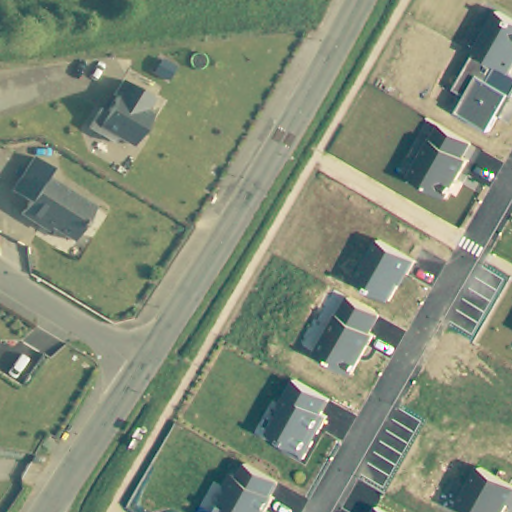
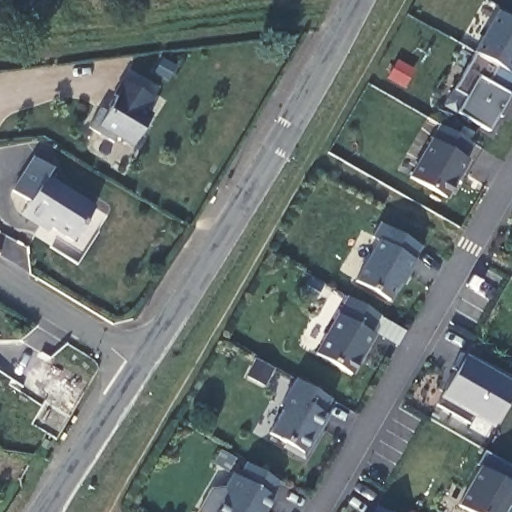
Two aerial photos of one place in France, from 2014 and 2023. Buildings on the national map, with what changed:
unchanged [(469,96),(457,89),(476,53),(501,11),(512,17),(512,98),(503,114),(500,112),(490,131),(457,115),(469,96)]
unchanged [(97,112),(104,116),(113,100),(110,98),(119,84),(149,102),(141,115),(147,119),(130,149),(115,140),(111,147),(86,132),(97,112)]
unchanged [(464,156),(470,160),(449,199),(407,177),(438,123),(472,142),(464,156)]
unchanged [(23,216),(30,204),(13,193),(34,159),(50,169),(45,177),(94,206),(75,242),(45,224),(42,227),(23,216)]
unchanged [(401,286),(398,285),(389,301),(353,280),(377,239),(416,260),(401,286)]
unchanged [(371,332),(376,335),(354,376),(313,353),(347,295),(381,315),(371,332)]
new [(443,396),(466,356),(512,382),(512,394),(493,427),(473,416),(470,423),(437,405),(443,396)]
unchanged [(322,412),(326,415),(302,457),(281,447),(284,442),(268,432),(281,407),(279,402),(293,377),(331,397),(322,412)]
unchanged [(274,497),(265,512),(213,512),(226,492),(223,485),(231,472),(238,475),(245,462),(280,481),(272,495),(274,497)]
unchanged [(504,512),(469,512),(457,505),(479,465),(512,484),(512,507),(508,505),(504,512)]
unchanged [(387,512),(372,512),(376,506),(387,512)]

